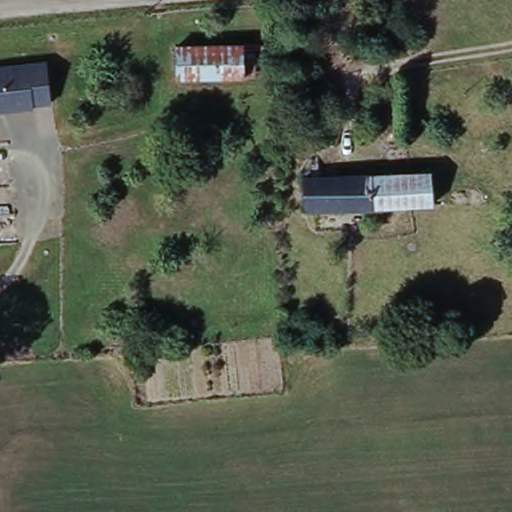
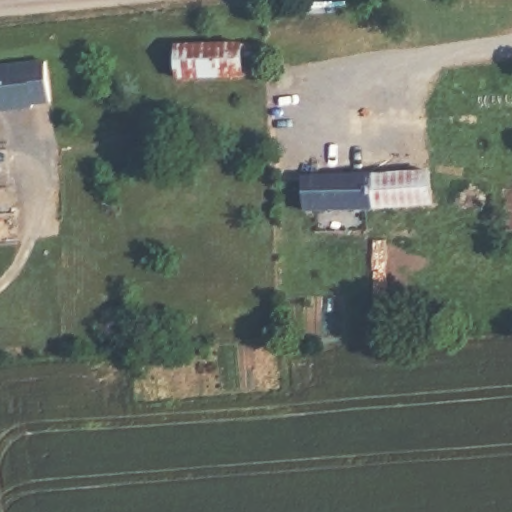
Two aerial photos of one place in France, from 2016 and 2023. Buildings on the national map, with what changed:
unchanged [(245,44),(245,76),(180,78),(180,45),(245,44)]
unchanged [(46,57),(49,97),(31,99),(31,102),(2,106),(0,106),(0,63),(46,57)]
unchanged [(432,172),(436,204),(306,209),(305,177),(432,172)]

